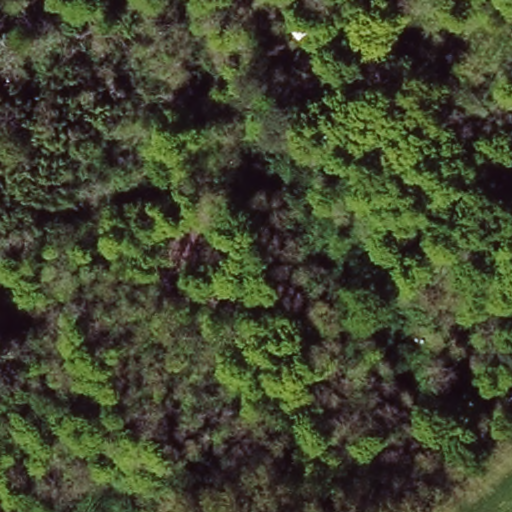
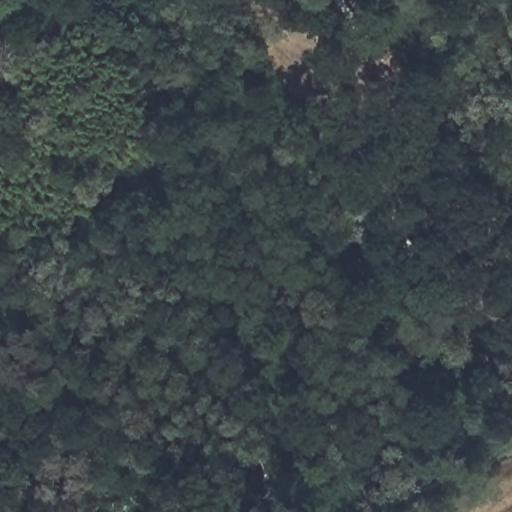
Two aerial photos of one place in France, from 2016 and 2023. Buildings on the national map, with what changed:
unchanged [(0,100),(0,74),(8,74),(8,100),(0,100)]

